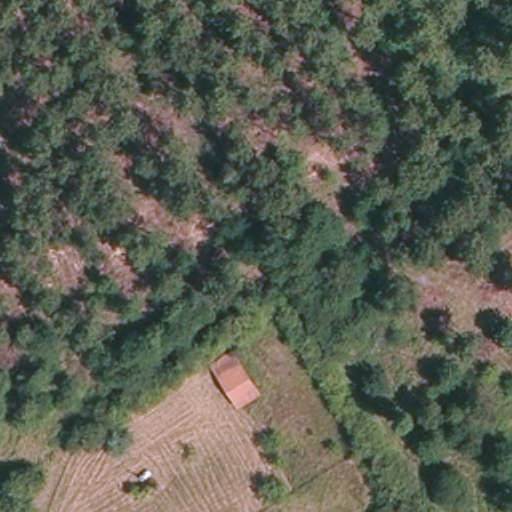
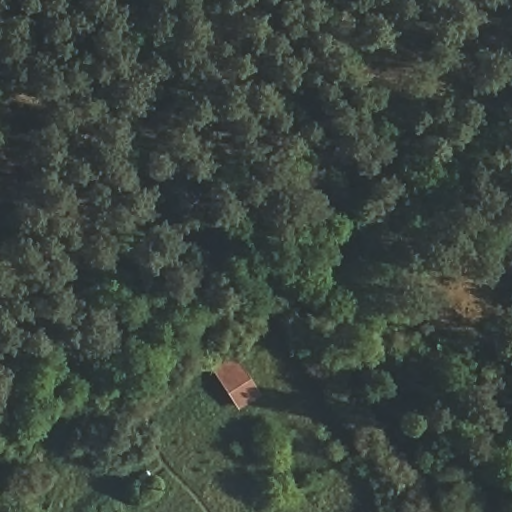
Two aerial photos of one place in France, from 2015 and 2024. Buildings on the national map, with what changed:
unchanged [(243,408),(221,378),(229,372),(226,361),(234,355),(242,363),(248,360),(268,391),(243,408)]

